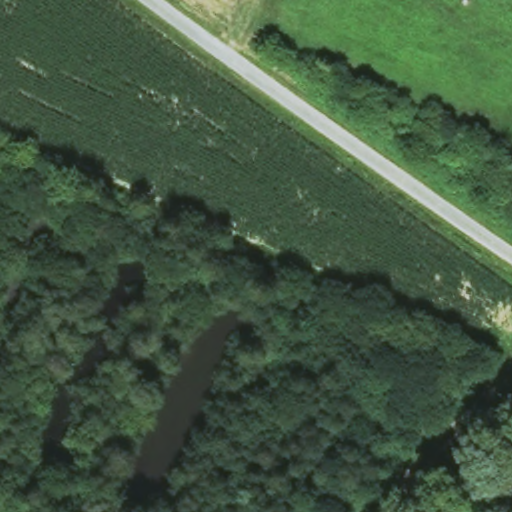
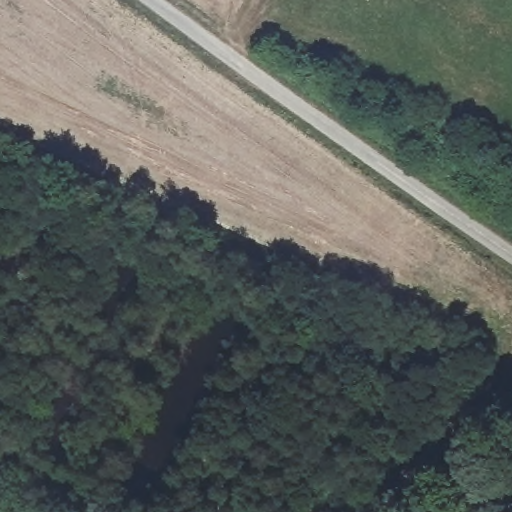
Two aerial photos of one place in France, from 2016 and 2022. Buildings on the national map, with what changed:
[]

